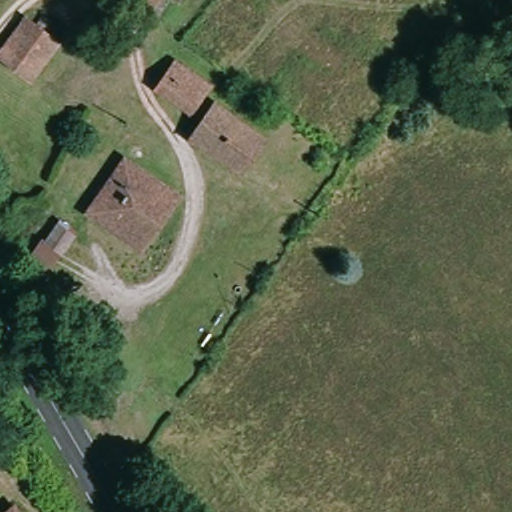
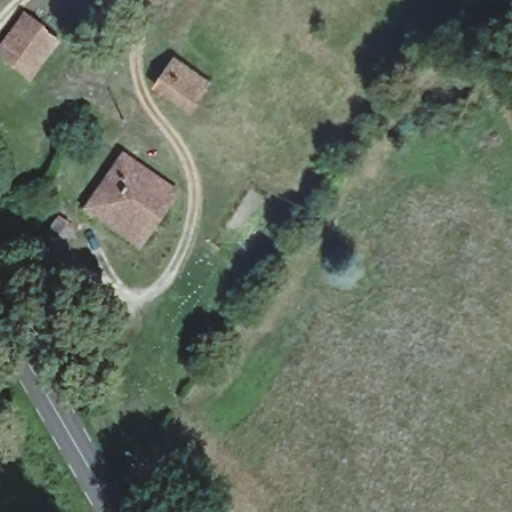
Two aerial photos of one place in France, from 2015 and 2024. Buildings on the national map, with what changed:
unchanged [(19,14),(57,42),(27,81),(0,62),(0,43),(19,14)]
unchanged [(183,107),(153,87),(171,62),(199,83),(183,107)]
demolished [(236,163),(193,134),(215,104),(257,134),(236,163)]
unchanged [(164,187),(128,247),(87,214),(126,159),(164,187)]
unchanged [(74,228),(47,269),(25,255),(47,213),(74,228)]
unchanged [(0,512),(0,502),(5,498),(17,512),(0,512)]

